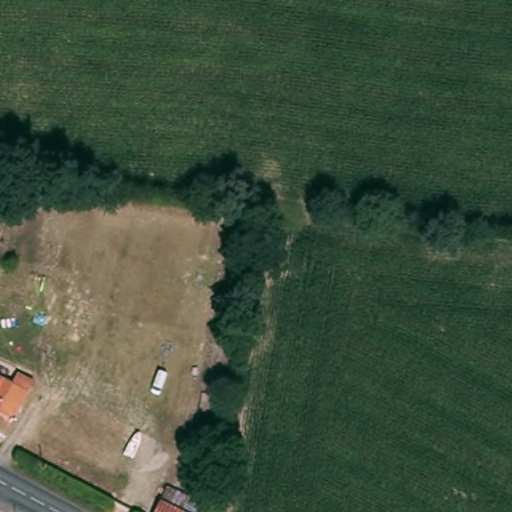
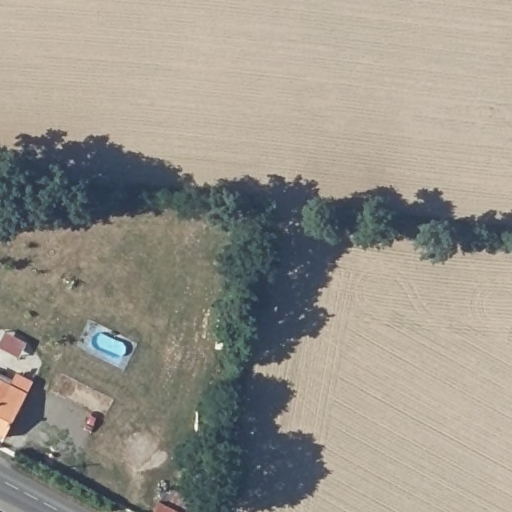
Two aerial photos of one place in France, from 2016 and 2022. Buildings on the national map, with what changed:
unchanged [(2,384),(10,388),(18,375),(34,384),(3,435),(0,434),(0,383),(2,384)]
unchanged [(154,512),(161,500),(185,512),(154,512)]

